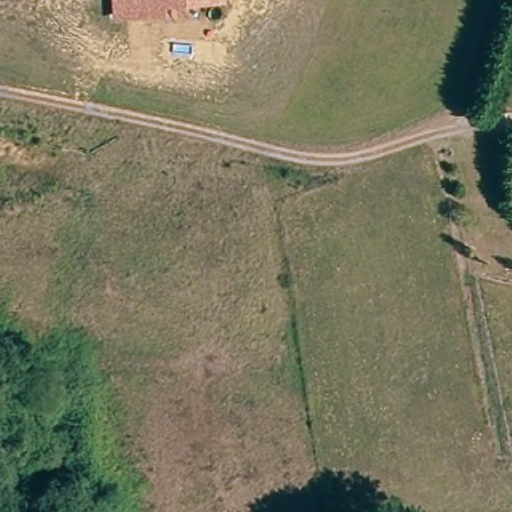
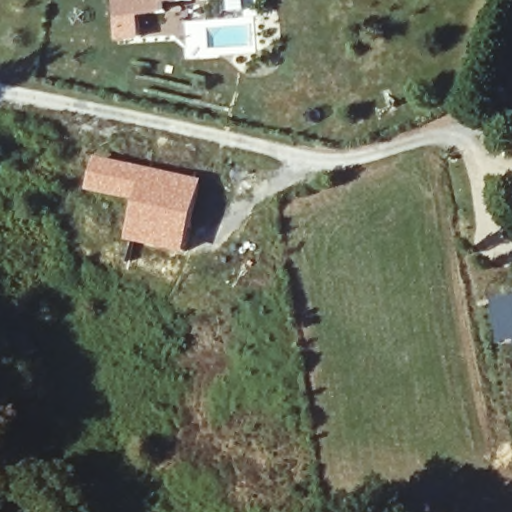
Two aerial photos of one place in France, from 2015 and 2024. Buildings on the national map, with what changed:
unchanged [(227,2),(164,7),(164,16),(112,20),(111,0),(227,0),(227,2)]
new [(95,157),(203,180),(185,257),(127,244),(135,205),(87,195),(95,157)]
new [(512,294),(512,346),(492,348),(485,298),(512,294)]

